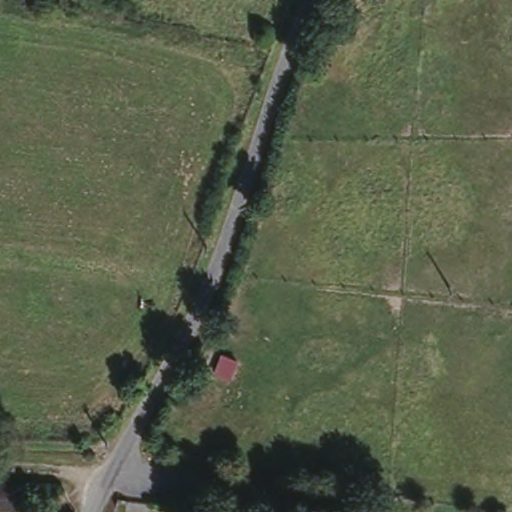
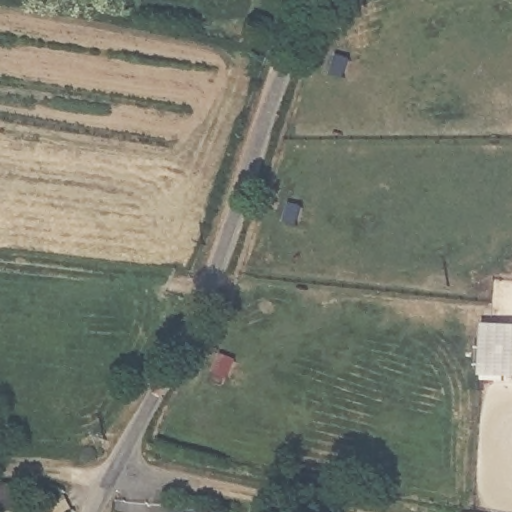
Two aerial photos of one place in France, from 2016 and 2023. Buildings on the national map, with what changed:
new [(512,383),(481,382),(484,329),(512,330),(512,383)]
demolished [(6,511),(6,512),(0,512),(0,511),(6,511)]

